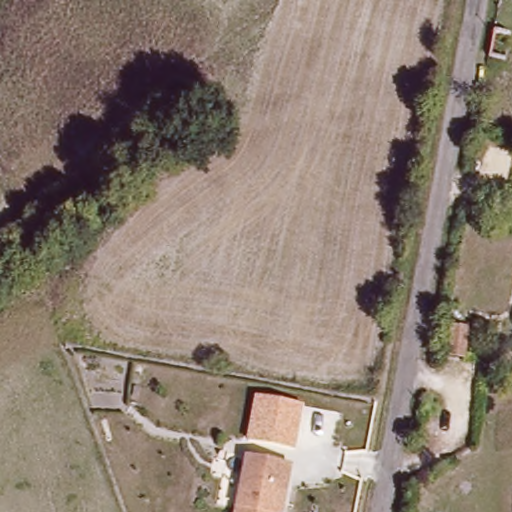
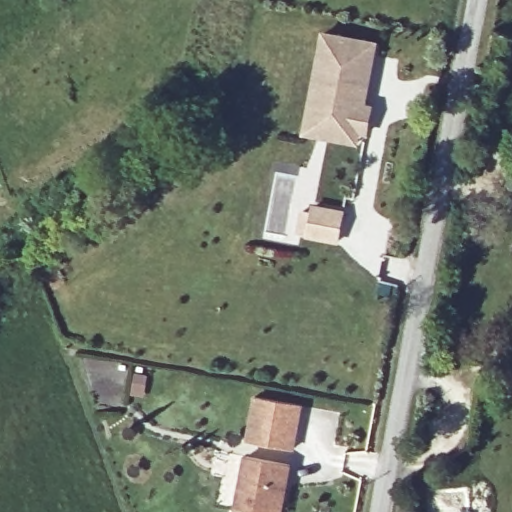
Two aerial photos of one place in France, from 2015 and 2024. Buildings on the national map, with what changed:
new [(377,42),(365,106),(372,108),(367,133),(360,132),(357,142),(306,133),(326,32),(377,42)]
new [(297,235),(302,209),(312,211),(313,203),(348,210),(342,243),(297,235)]
unchanged [(303,406),(296,449),(246,440),(253,396),(303,406)]
unchanged [(288,462),(282,497),(281,502),(279,512),(234,512),(245,455),(288,462)]

